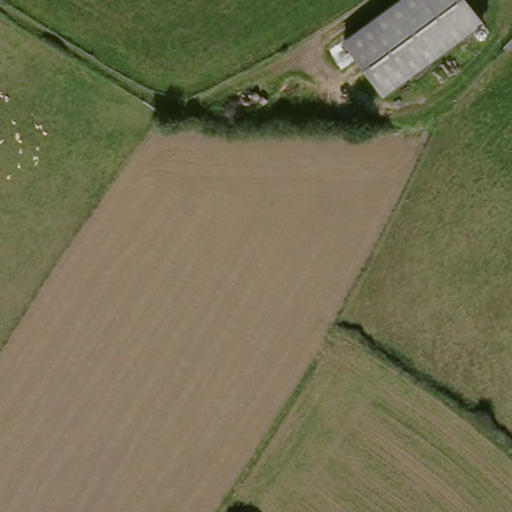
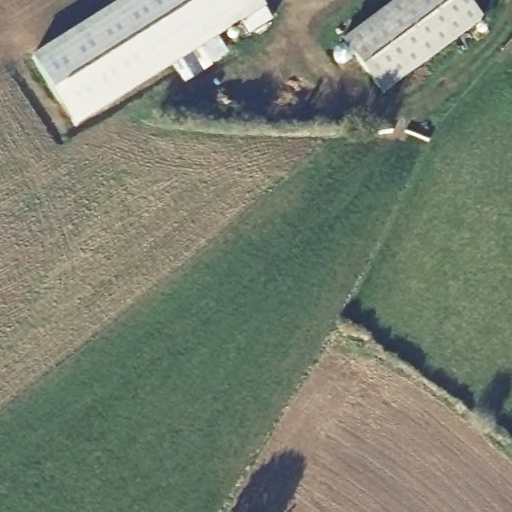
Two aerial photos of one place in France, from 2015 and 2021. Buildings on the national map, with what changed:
new [(265,0),(266,1),(78,118),(36,50),(116,0),(265,0)]
unchanged [(466,0),(484,24),(388,95),(347,41),(398,4),(403,0),(466,0)]

